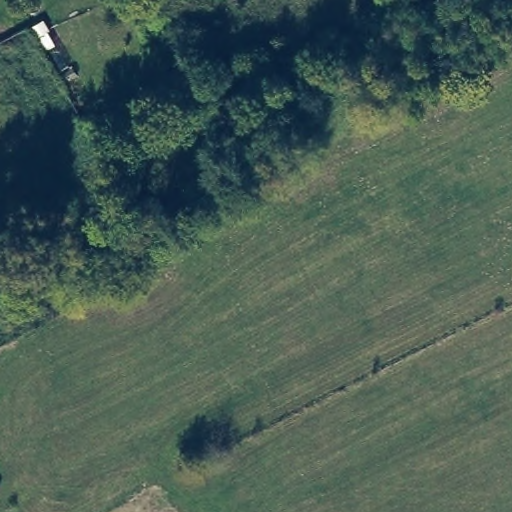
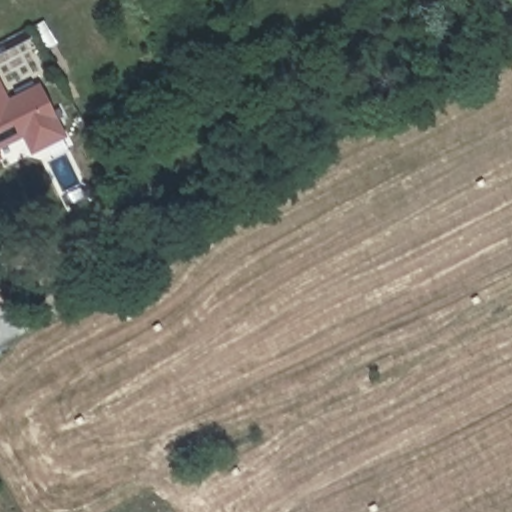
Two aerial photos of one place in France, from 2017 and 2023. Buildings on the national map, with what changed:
new [(23,140),(0,150),(0,81),(9,99),(40,84),(67,138),(31,156),(23,140)]
new [(0,161),(0,154),(2,160),(0,161)]

